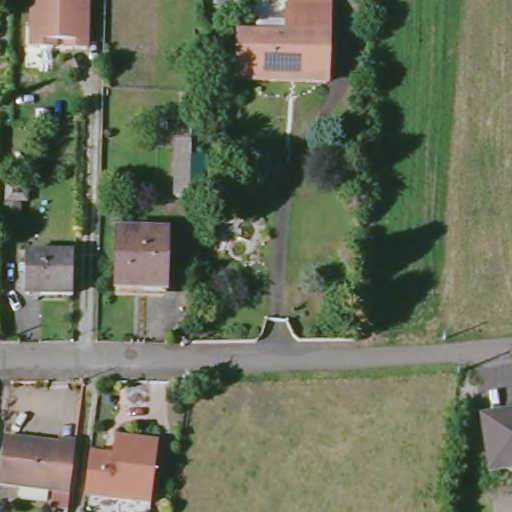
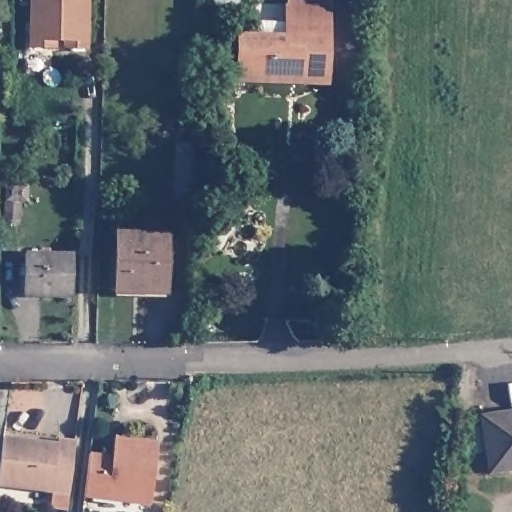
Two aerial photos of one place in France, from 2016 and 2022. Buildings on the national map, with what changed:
unchanged [(32,0),(88,0),(87,48),(65,48),(65,40),(53,40),(53,48),(31,47),(32,0)]
unchanged [(240,42),(258,42),(258,28),(289,28),(290,10),(330,10),(327,87),(240,85),(240,42)]
unchanged [(182,198),(182,142),(196,144),(194,198),(182,198)]
unchanged [(168,237),(167,291),(117,290),(117,236),(168,237)]
unchanged [(70,294),(23,293),(24,253),(71,255),(70,294)]
unchanged [(490,473),(483,418),(512,414),(512,470),(490,473)]
unchanged [(0,483),(0,435),(44,440),(53,440),(54,436),(71,438),(65,485),(64,491),(62,508),(45,506),(47,489),(0,483)]
unchanged [(92,450),(114,453),(117,435),(160,441),(152,502),(86,492),(92,450)]

